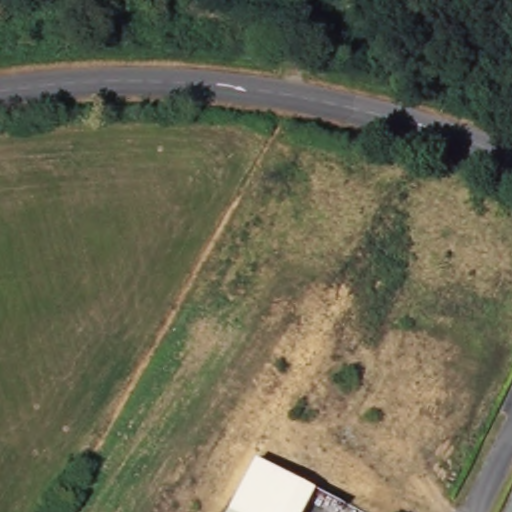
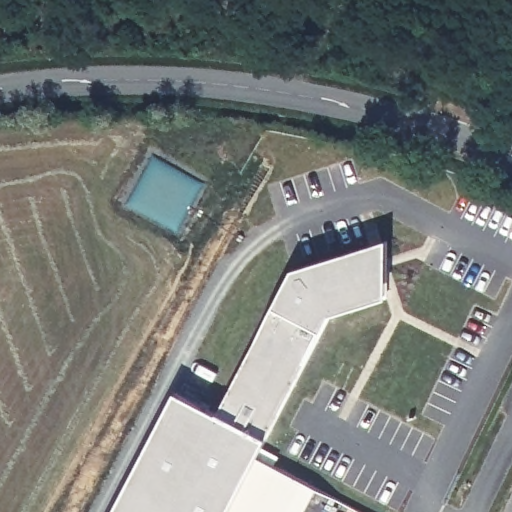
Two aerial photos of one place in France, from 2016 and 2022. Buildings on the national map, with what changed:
new [(218,415),(293,269),(388,238),(388,298),(331,316),(262,448),(280,457),(273,468),(258,461),(234,508),(231,512),(115,512),(177,392),(218,415)]
unchanged [(318,490),(307,512),(244,512),(234,508),(258,461),(318,490)]
unchanged [(244,512),(231,512),(234,508),(244,512)]

